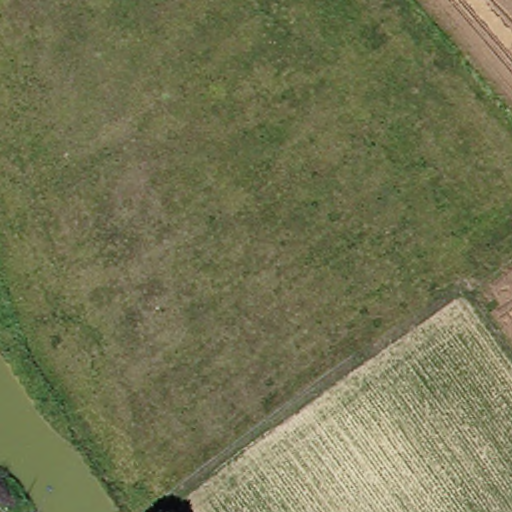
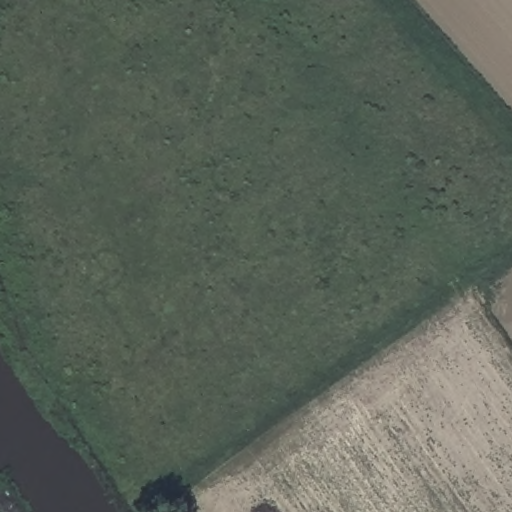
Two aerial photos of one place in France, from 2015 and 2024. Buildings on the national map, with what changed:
[]

